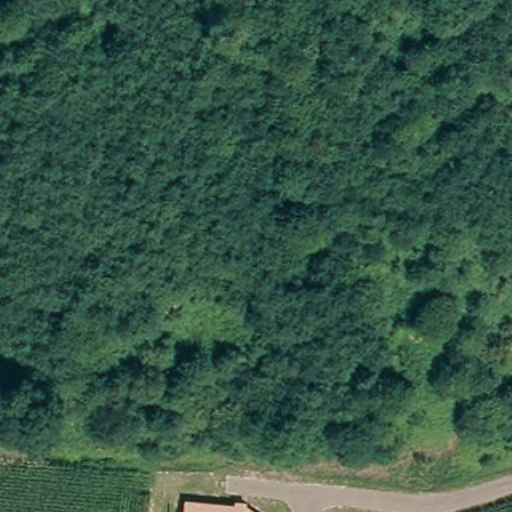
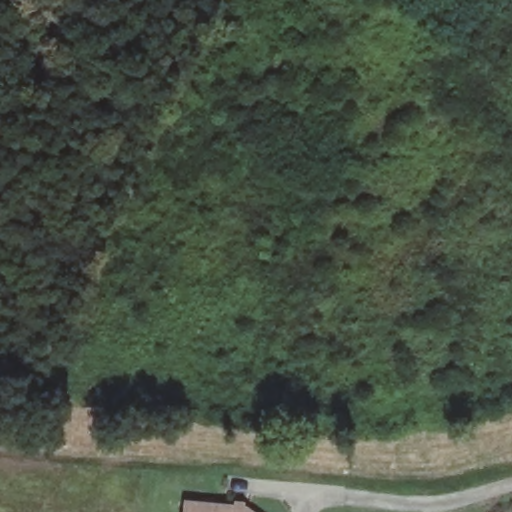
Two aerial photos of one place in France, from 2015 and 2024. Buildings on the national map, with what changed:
unchanged [(235,501),(236,497),(248,499),(248,503),(258,512),(187,512),(190,495),(235,501)]

